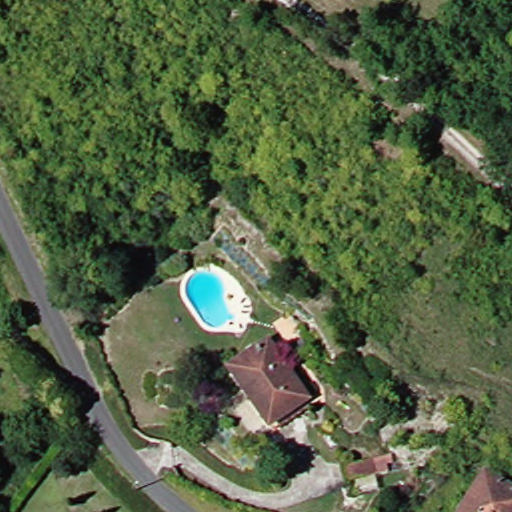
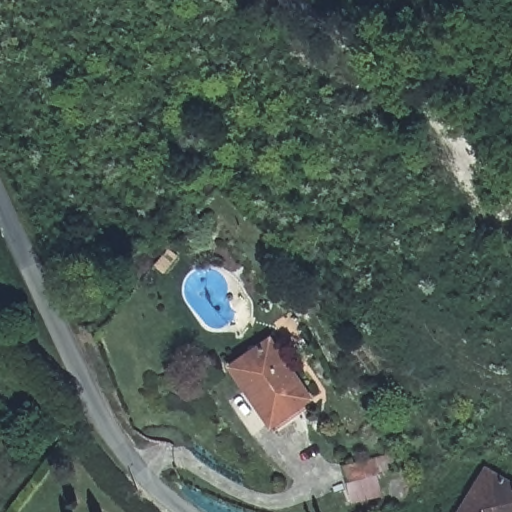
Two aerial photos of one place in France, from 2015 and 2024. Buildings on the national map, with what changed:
unchanged [(314,400),(278,426),(236,363),(271,338),(314,400)]
unchanged [(364,467),(357,449),(388,439),(394,458),(364,467)]
unchanged [(489,470),(512,484),(512,512),(464,512),(489,470)]

